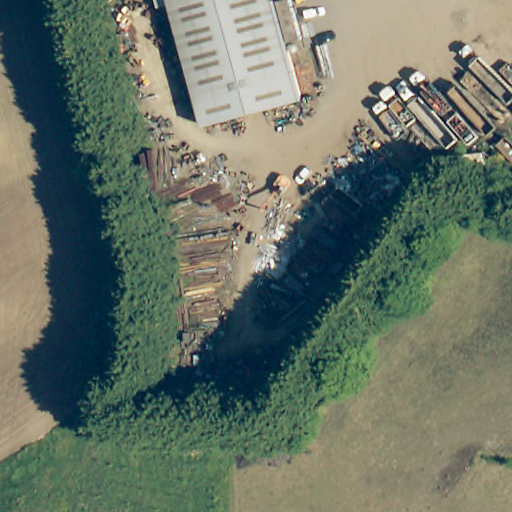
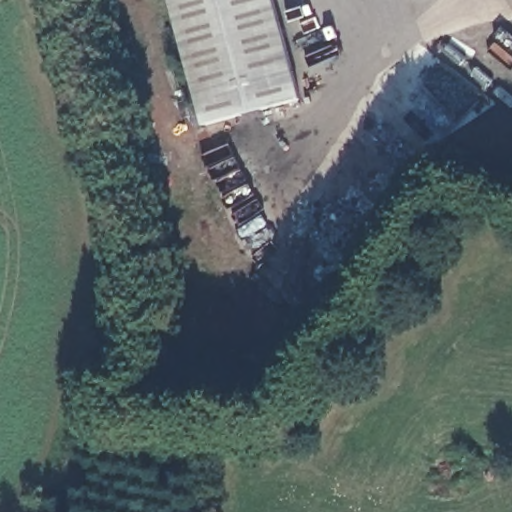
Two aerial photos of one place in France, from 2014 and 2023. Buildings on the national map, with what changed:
unchanged [(205,124),(172,0),(277,0),(302,97),(205,124)]

